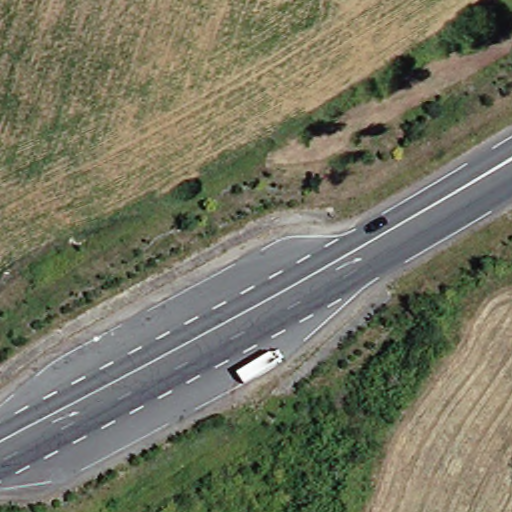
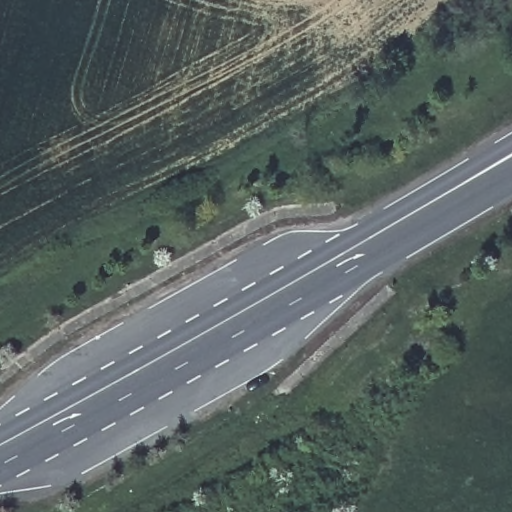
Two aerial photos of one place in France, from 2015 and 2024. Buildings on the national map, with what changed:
[]

